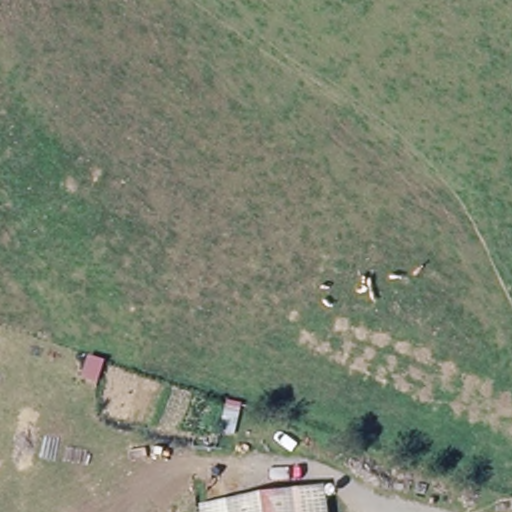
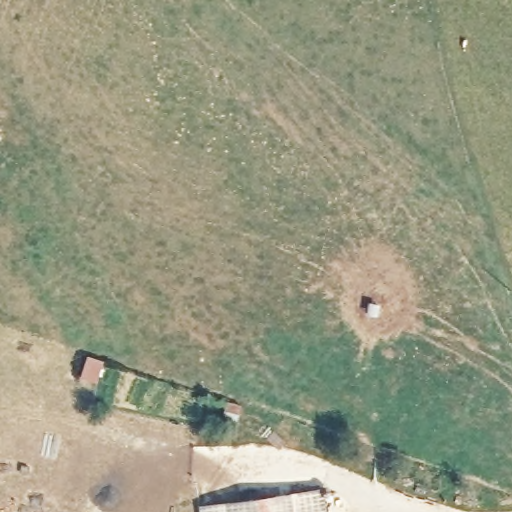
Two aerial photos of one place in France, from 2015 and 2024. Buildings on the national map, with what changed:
unchanged [(332,488),(332,499),(334,512),(212,512),(211,501),(315,491),(332,488)]

